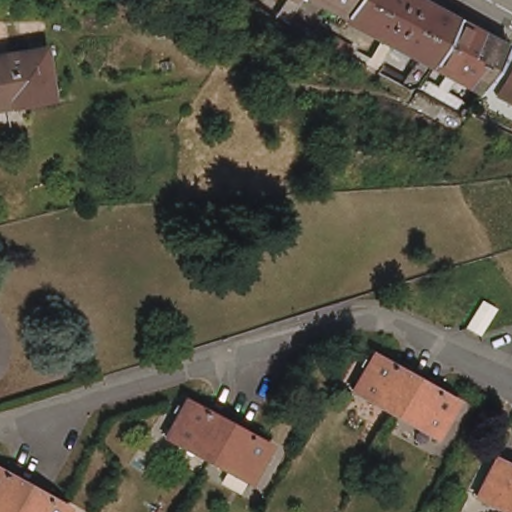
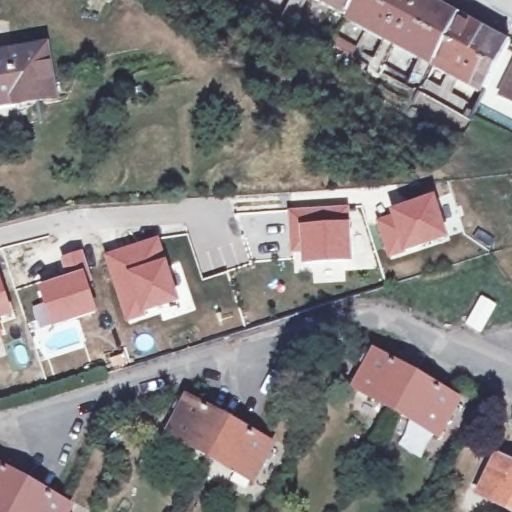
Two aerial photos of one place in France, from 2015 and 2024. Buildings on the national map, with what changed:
unchanged [(256,10),(237,0),(263,0),(256,10)]
unchanged [(297,2),(293,0),(299,0),(297,2)]
unchanged [(349,15),(317,0),(358,0),(349,15)]
unchanged [(441,63),(349,15),(358,0),(421,0),(463,22),(441,63)]
unchanged [(463,22),(512,48),(512,56),(511,56),(492,92),(441,63),(463,22)]
unchanged [(9,50),(52,42),(62,96),(12,106),(10,98),(0,100),(0,60),(10,58),(9,50)]
unchanged [(512,57),(512,129),(482,112),(492,92),(511,56),(512,57)]
new [(435,196),(449,240),(387,260),(375,220),(435,196)]
new [(348,205),(353,263),(301,266),(300,254),(290,254),(286,210),(348,205)]
new [(159,237),(180,303),(125,323),(104,256),(159,237)]
new [(43,303),(40,288),(66,278),(60,259),(83,250),(90,272),(87,273),(98,313),(38,331),(31,307),(43,303)]
new [(13,313),(0,318),(0,281),(2,280),(13,313)]
new [(481,296),(498,305),(480,335),(463,325),(481,296)]
new [(0,343),(0,318),(6,341),(0,343)]
unchanged [(377,348),(459,394),(437,434),(355,389),(377,348)]
unchanged [(188,399),(272,432),(255,475),(170,442),(188,399)]
unchanged [(512,461),(512,512),(501,512),(475,500),(497,453),(512,461)]
unchanged [(66,512),(0,512),(0,462),(71,502),(66,512)]

